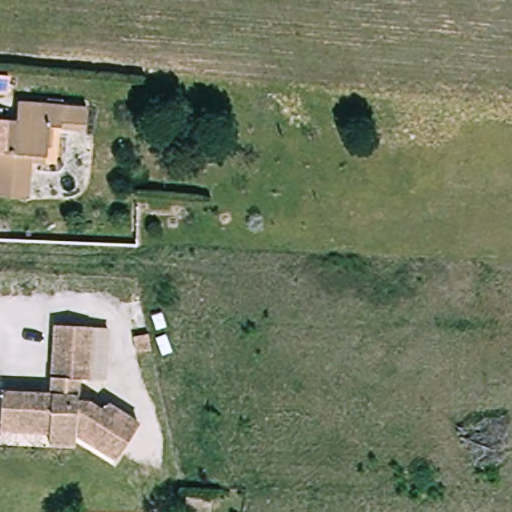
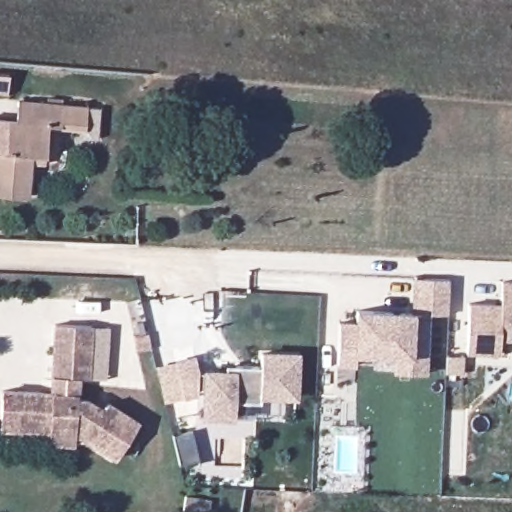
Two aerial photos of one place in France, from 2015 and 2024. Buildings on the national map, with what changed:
unchanged [(16,143),(20,100),(88,105),(86,131),(47,129),(46,144),(35,143),(31,188),(0,186),(0,141),(16,143)]
new [(355,321),(355,311),(412,313),(413,279),(450,280),(448,317),(430,317),(427,374),(393,374),(393,358),(356,356),(355,367),(337,366),(339,322),(355,321)]
new [(501,282),(512,282),(512,342),(501,342),(500,356),(466,356),(468,303),(500,306),(501,282)]
unchanged [(53,432),(3,430),(4,418),(5,392),(55,394),(58,325),(95,326),(110,328),(107,380),(91,378),(82,378),(81,400),(90,400),(105,410),(110,403),(140,423),(119,459),(78,433),(78,444),(52,443),(53,432)]
new [(199,373),(205,373),(206,371),(225,371),(226,367),(261,367),(262,352),(300,353),(298,402),(261,401),(260,403),(235,403),(235,421),(200,420),(201,396),(185,400),(175,362),(195,356),(199,373)]

